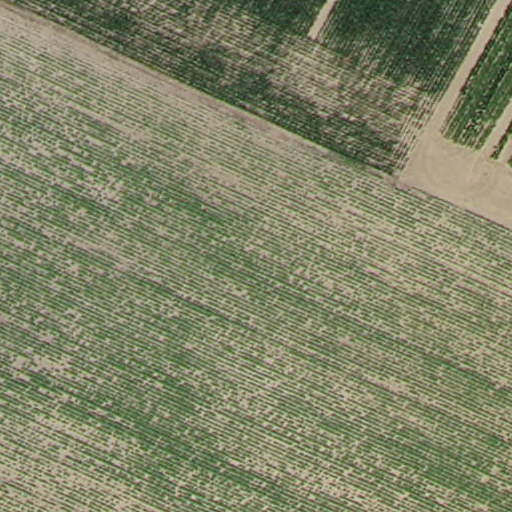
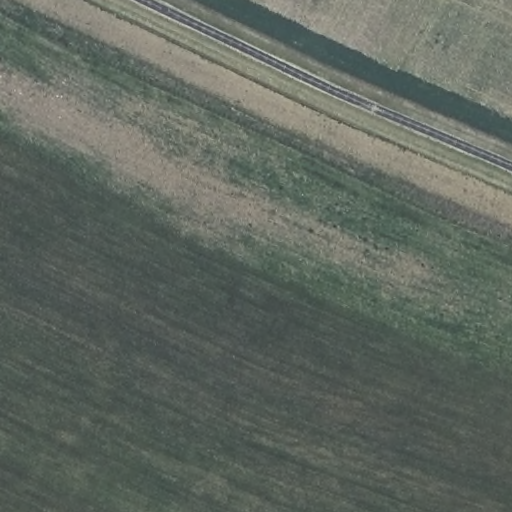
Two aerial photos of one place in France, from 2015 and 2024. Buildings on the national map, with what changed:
[]

